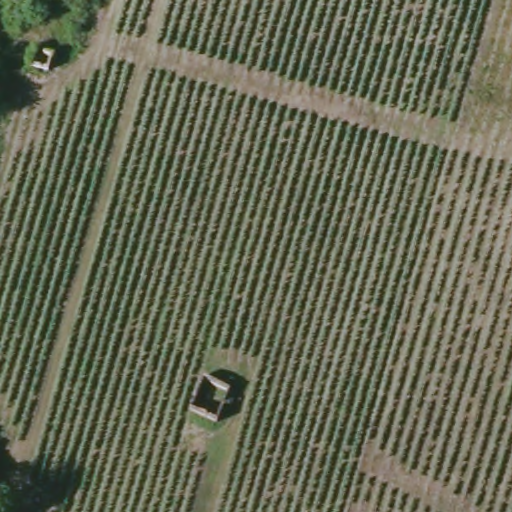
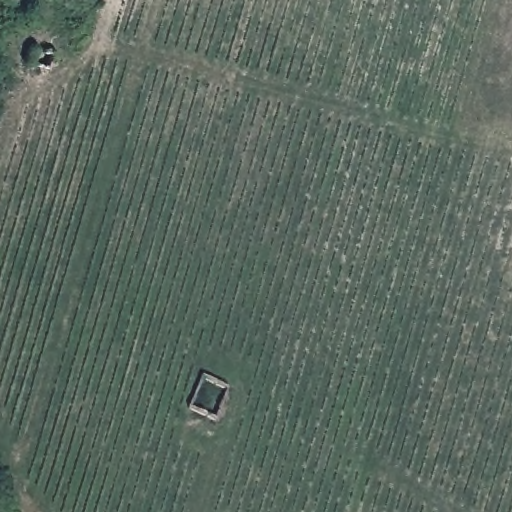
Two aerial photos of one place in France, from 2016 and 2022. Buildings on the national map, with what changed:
unchanged [(39,53),(43,37),(61,44),(58,58),(39,53)]

